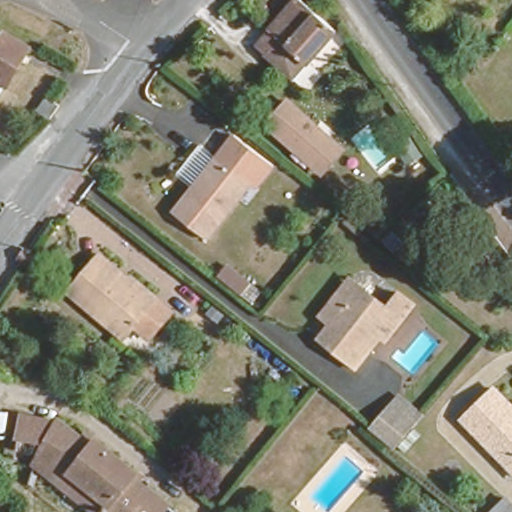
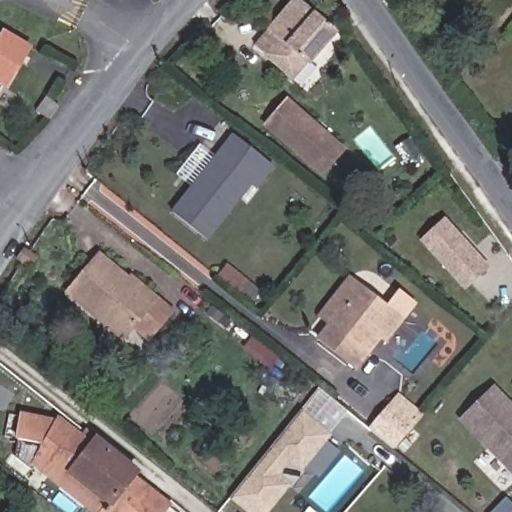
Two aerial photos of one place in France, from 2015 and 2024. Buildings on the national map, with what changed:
unchanged [(264,27),(287,0),(304,0),(334,26),(294,78),(262,49),(253,41),(264,27)]
unchanged [(32,45),(9,87),(0,82),(0,39),(5,31),(32,45)]
unchanged [(45,112),(55,95),(69,102),(60,120),(45,112)]
unchanged [(352,151),(323,182),(260,127),(292,97),(352,151)]
unchanged [(203,236),(166,207),(187,182),(210,152),(229,126),(275,164),(258,186),(249,180),(203,236)]
new [(489,267),(464,290),(419,240),(445,217),(489,267)]
unchanged [(163,290),(179,303),(159,329),(146,318),(136,330),(74,281),(101,248),(118,262),(111,270),(126,282),(133,274),(159,295),(163,290)]
unchanged [(314,311),(356,263),(368,272),(327,322),(314,311)]
unchanged [(208,279),(218,266),(238,282),(227,295),(208,279)]
unchanged [(373,332),(359,347),(365,352),(353,367),(314,337),(327,322),(368,272),(396,295),(407,281),(425,293),(386,341),(373,332)]
unchanged [(512,476),(452,416),(478,390),(512,425),(512,476)]
unchanged [(400,453),(368,431),(400,394),(425,420),(400,453)]
unchanged [(35,463),(38,456),(43,441),(24,431),(32,406),(55,415),(103,449),(106,444),(144,472),(138,482),(164,501),(155,512),(96,512),(98,508),(35,463)]
new [(302,473),(288,463),(279,475),(290,483),(269,512),(247,512),(229,498),(300,412),(331,436),(302,473)]
unchanged [(512,505),(512,512),(493,512),(505,498),(512,505)]

